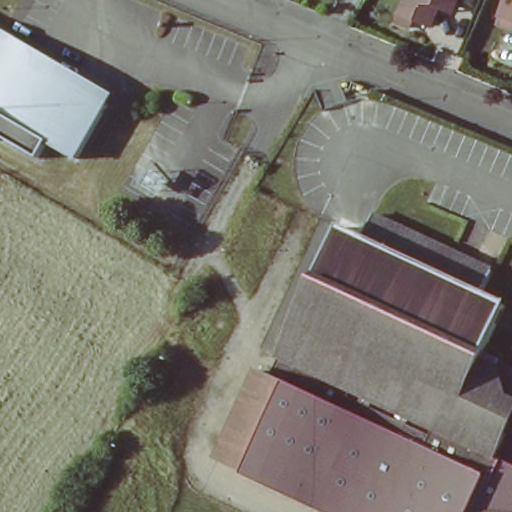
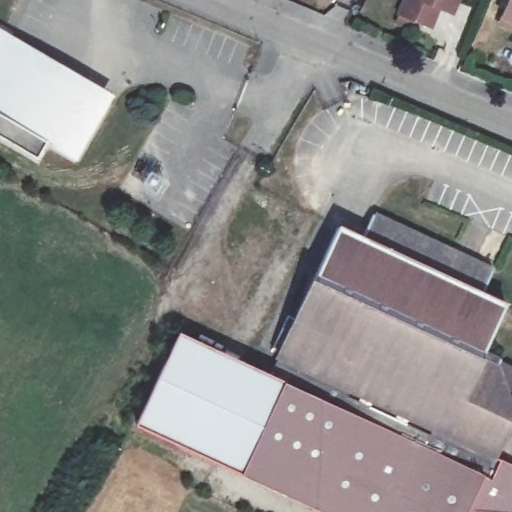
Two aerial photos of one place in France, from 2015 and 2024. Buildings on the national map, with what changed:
unchanged [(442,1),(436,15),(405,2),(406,0),(462,0),(459,8),(442,1)]
unchanged [(504,20),(512,2),(512,23),(504,20)]
unchanged [(8,39),(13,35),(24,43),(33,56),(31,63),(48,71),(51,66),(107,99),(75,156),(47,141),(37,156),(0,134),(0,35),(8,39)]
unchanged [(486,288),(509,299),(487,344),(504,352),(501,360),(500,363),(509,383),(512,390),(512,427),(501,452),(512,457),(512,512),(342,512),(226,460),(265,372),(272,374),(342,220),(363,229),(375,206),(498,262),(486,288)]
new [(137,424),(180,331),(265,372),(226,460),(137,424)]
unchanged [(512,365),(512,390),(509,383),(500,363),(501,360),(512,365)]

